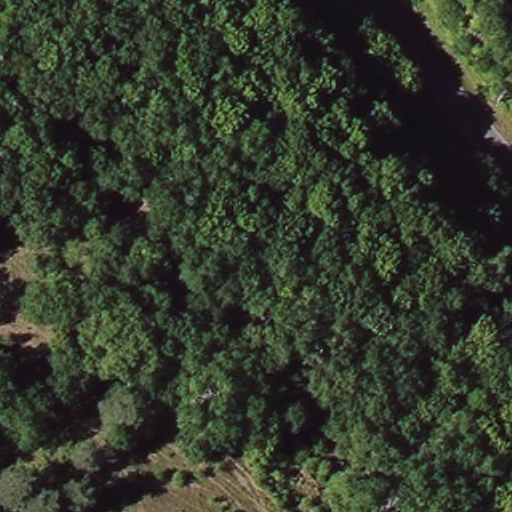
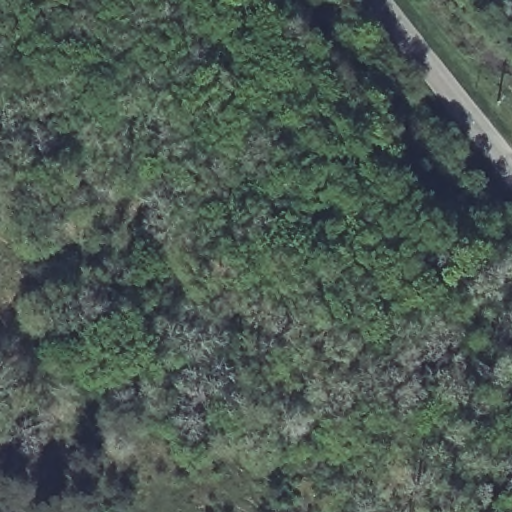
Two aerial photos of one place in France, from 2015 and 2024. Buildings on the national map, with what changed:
unchanged [(493,276),(483,268),(477,260),(488,250),(506,267),(493,276)]

